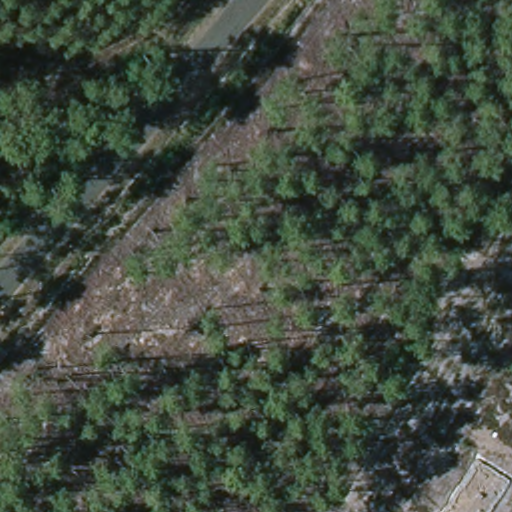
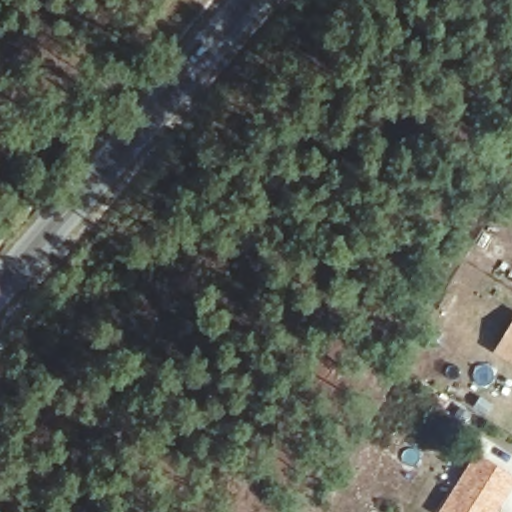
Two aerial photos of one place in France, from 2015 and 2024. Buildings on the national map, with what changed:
new [(493,352),(512,321),(512,363),(493,352)]
new [(497,512),(440,512),(476,452),(512,473),(512,487),(497,512)]

